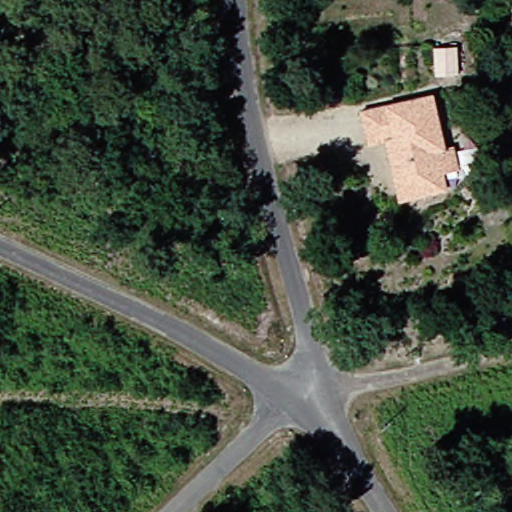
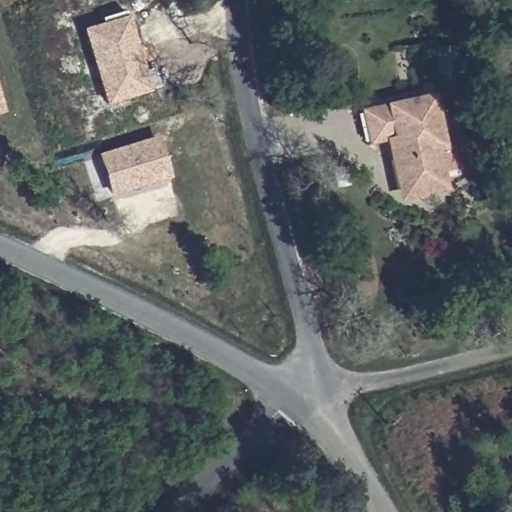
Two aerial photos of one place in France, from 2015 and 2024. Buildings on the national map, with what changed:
new [(145,71),(154,68),(160,90),(106,106),(84,29),(130,16),(145,71)]
unchanged [(429,50),(455,49),(456,77),(431,78),(429,50)]
new [(6,112),(0,114),(0,93),(6,112)]
unchanged [(455,172),(441,174),(442,184),(432,197),(410,200),(395,191),(384,144),(366,148),(358,113),(433,100),(445,151),(451,150),(455,172)]
new [(151,138),(155,149),(162,147),(167,164),(162,166),(166,180),(111,197),(98,154),(151,138)]

